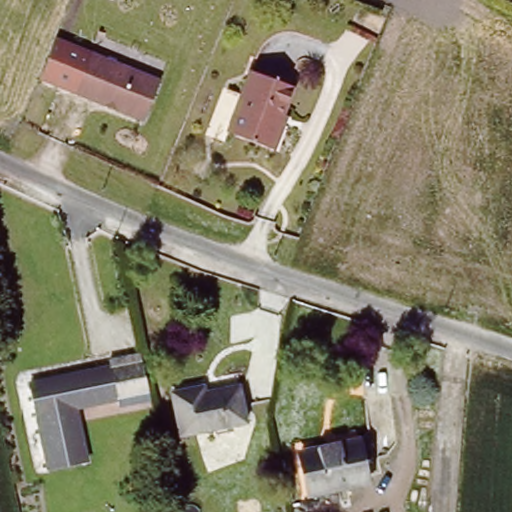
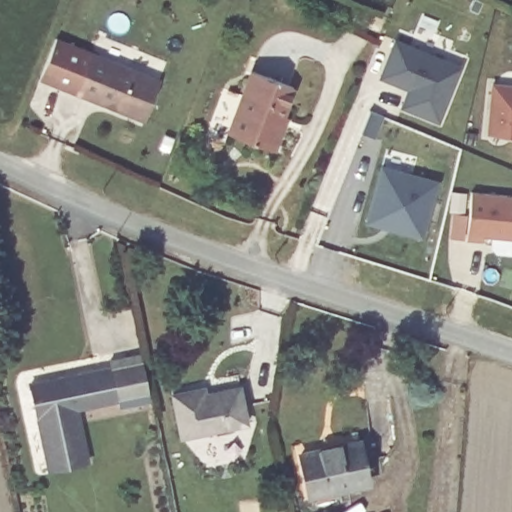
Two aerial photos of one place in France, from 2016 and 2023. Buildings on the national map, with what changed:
unchanged [(160,81),(142,122),(39,80),(55,38),(160,81)]
new [(397,39),(462,66),(438,124),(400,107),(407,89),(380,78),(397,39)]
unchanged [(272,151),(226,132),(250,71),(291,88),(280,116),(285,119),(282,126),(272,151)]
new [(494,82),(512,84),(512,135),(487,133),(494,82)]
new [(382,167),(437,181),(422,237),(365,222),(382,167)]
new [(469,214),(470,191),(512,195),(512,238),(483,235),(483,240),(466,239),(450,237),(450,214),(469,214)]
unchanged [(152,401),(119,409),(117,400),(77,410),(88,462),(50,470),(31,383),(110,365),(110,360),(142,352),(152,401)]
unchanged [(203,388),(205,394),(239,387),(247,425),(183,437),(173,395),(203,388)]
unchanged [(362,441),(371,483),(315,495),(306,453),(362,441)]

